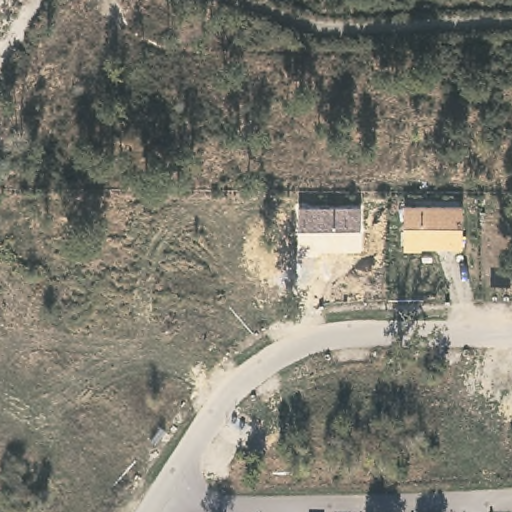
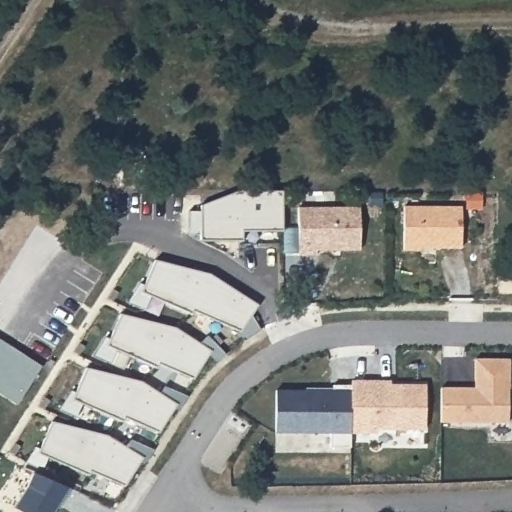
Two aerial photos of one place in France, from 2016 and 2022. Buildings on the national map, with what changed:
new [(189,211),(202,211),(202,205),(242,191),(283,192),(283,230),(242,230),(242,240),(202,240),(201,235),(188,235),(189,211)]
unchanged [(317,252),(316,257),(302,258),(299,209),(361,206),(362,252),(317,252)]
unchanged [(422,249),(423,251),(403,250),(404,207),(462,206),(463,250),(422,249)]
new [(245,341),(239,330),(194,310),(192,313),(152,296),(144,311),(127,303),(140,282),(144,286),(157,260),(210,273),(259,306),(251,317),(262,331),(245,341)]
new [(217,363),(209,355),(194,378),(159,364),(157,367),(116,349),(109,363),(94,356),(106,336),(110,341),(122,314),(178,327),(200,343),(208,335),(225,355),(217,363)]
new [(0,392),(0,339),(41,365),(18,404),(0,392)]
unchanged [(443,422),(444,388),(479,387),(478,360),(511,359),(509,423),(443,422)]
new [(179,412),(174,408),(159,432),(124,417),(123,421),(80,403),(76,417),(59,410),(71,391),(76,394),(87,367),(143,381),(161,392),(164,386),(187,397),(179,412)]
new [(356,383),(373,383),(373,387),(431,387),(430,422),(382,422),(381,426),(355,426),(356,383)]
new [(355,426),(354,433),(276,432),(276,391),(356,392),(355,426)]
new [(140,461),(125,485),(91,471),(89,473),(47,456),(41,477),(66,487),(57,506),(53,512),(22,512),(15,507),(28,488),(34,473),(23,466),(35,446),(40,450),(53,422),(108,435),(125,447),(131,440),(152,449),(145,464),(140,461)]

